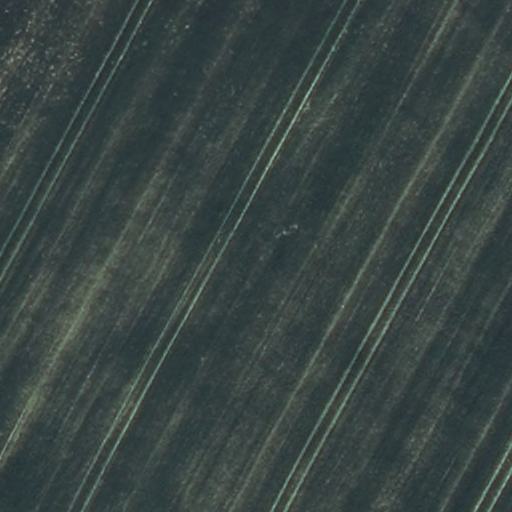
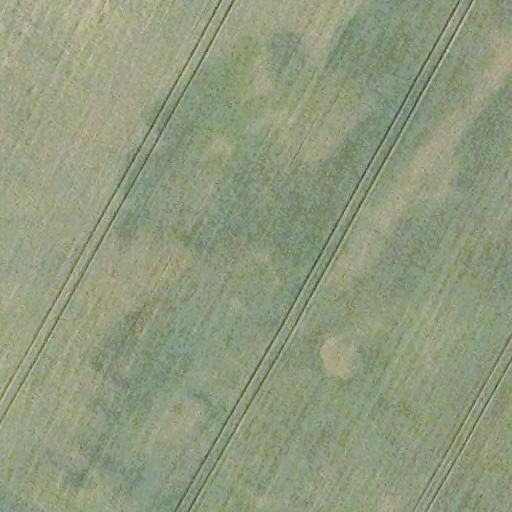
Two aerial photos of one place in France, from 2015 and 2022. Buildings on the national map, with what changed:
[]

